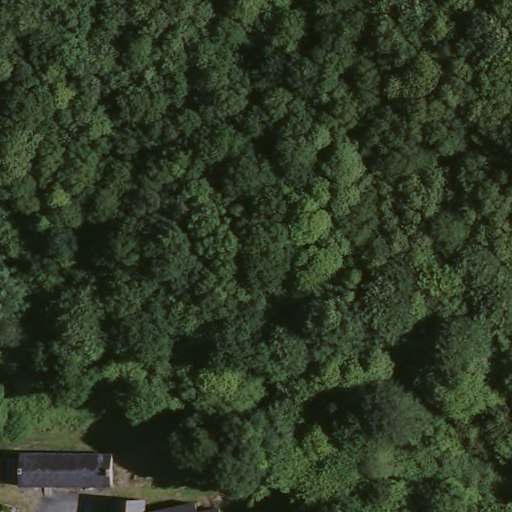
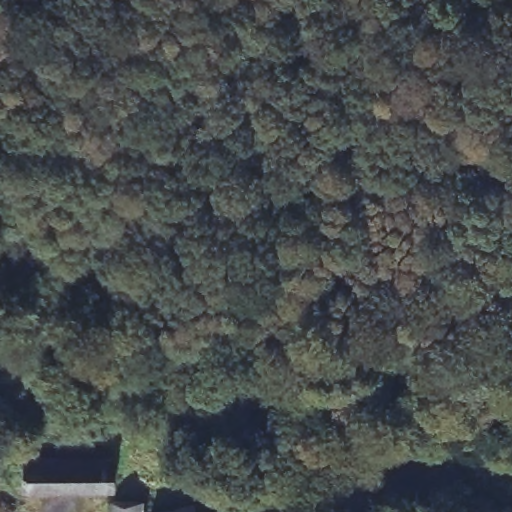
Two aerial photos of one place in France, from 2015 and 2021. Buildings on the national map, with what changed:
unchanged [(111,486),(22,484),(22,451),(35,452),(112,453),(111,486)]
unchanged [(148,512),(112,512),(112,502),(148,504),(148,512)]
unchanged [(202,512),(161,512),(200,503),(202,512)]
unchanged [(226,512),(202,512),(225,507),(226,512)]

